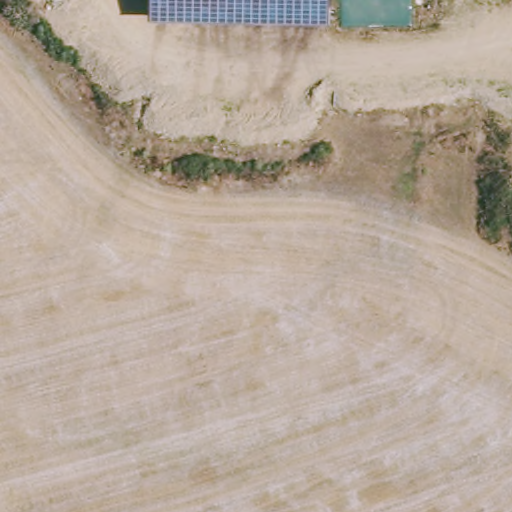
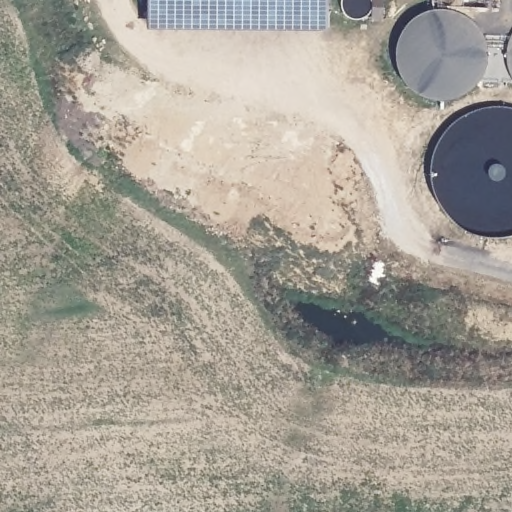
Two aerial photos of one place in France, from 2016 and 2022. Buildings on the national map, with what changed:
unchanged [(327,31),(147,30),(147,0),(327,0),(327,31)]

